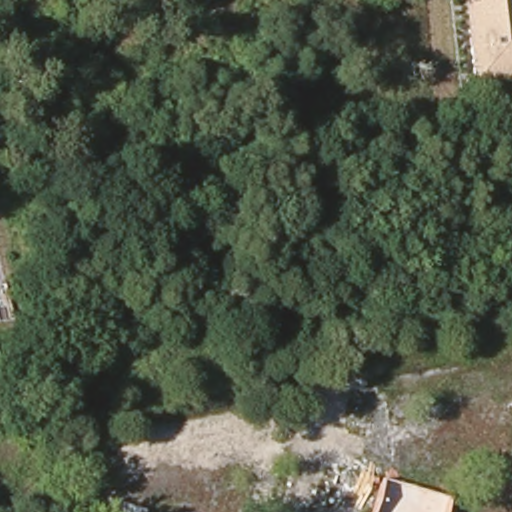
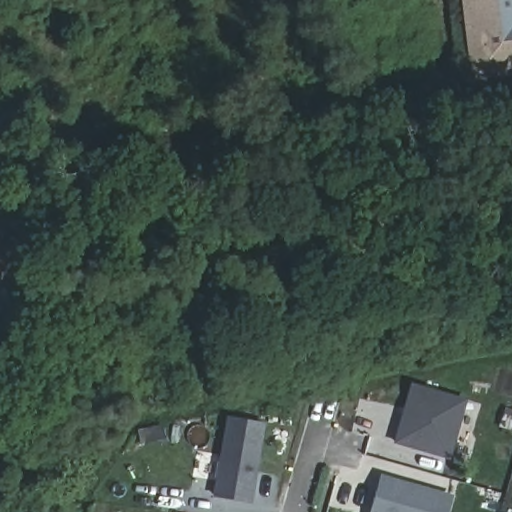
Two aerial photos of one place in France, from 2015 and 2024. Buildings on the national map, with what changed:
unchanged [(463,0),(512,0),(512,76),(471,82),(463,0)]
new [(394,443),(411,383),(468,398),(450,459),(394,443)]
new [(213,497),(228,417),(266,423),(253,503),(213,497)]
unchanged [(445,512),(372,512),(382,477),(449,497),(445,512)]

